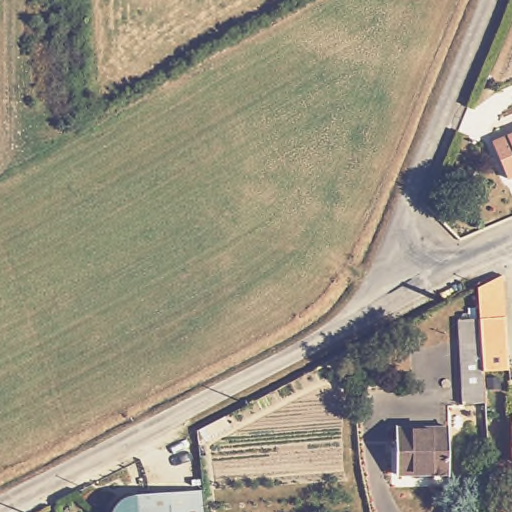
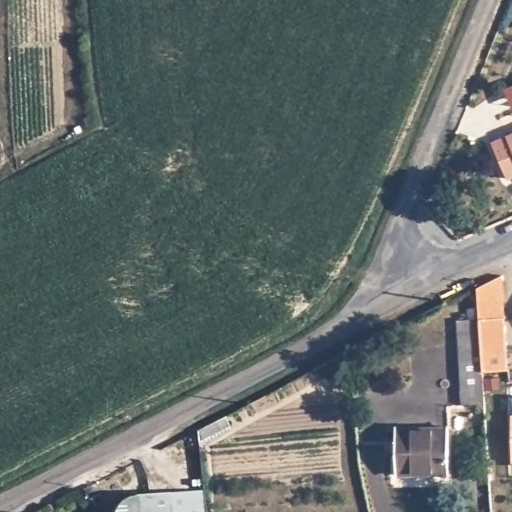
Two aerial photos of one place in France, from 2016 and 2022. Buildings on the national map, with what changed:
unchanged [(512,135),(512,174),(504,177),(491,144),(512,135)]
unchanged [(478,303),(477,287),(501,275),(503,302),(478,303)]
unchanged [(462,410),(460,367),(459,345),(480,343),(478,317),(502,316),(505,367),(481,368),(483,393),(484,409),(462,410)]
unchanged [(447,477),(395,478),(394,429),(446,429),(447,477)]
unchanged [(125,503),(130,501),(135,499),(200,493),(202,512),(117,512),(119,508),(125,503)]

